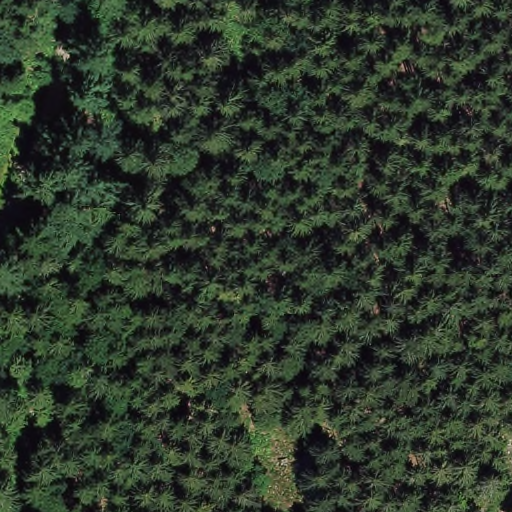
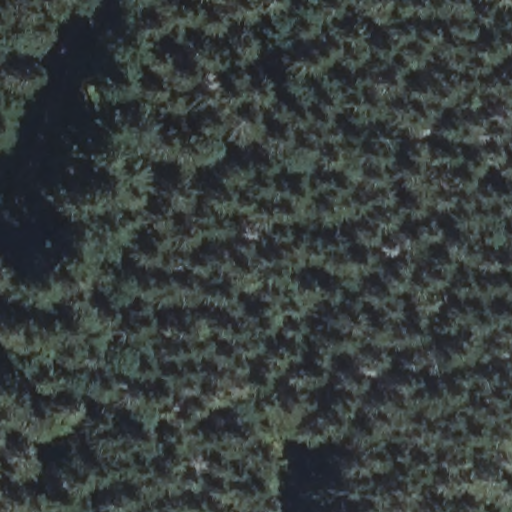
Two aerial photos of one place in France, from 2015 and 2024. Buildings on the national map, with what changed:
unchanged [(0,142),(0,116),(9,120),(0,142)]

